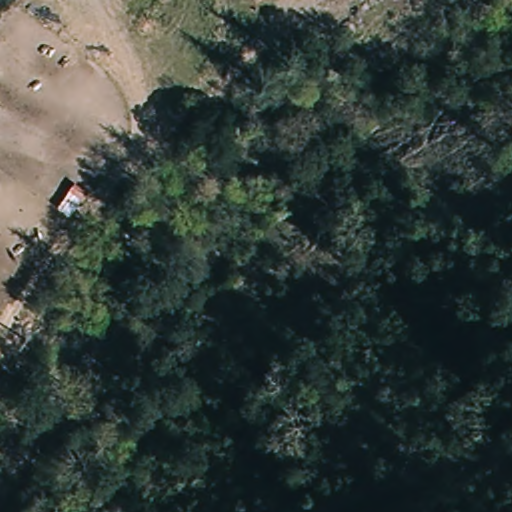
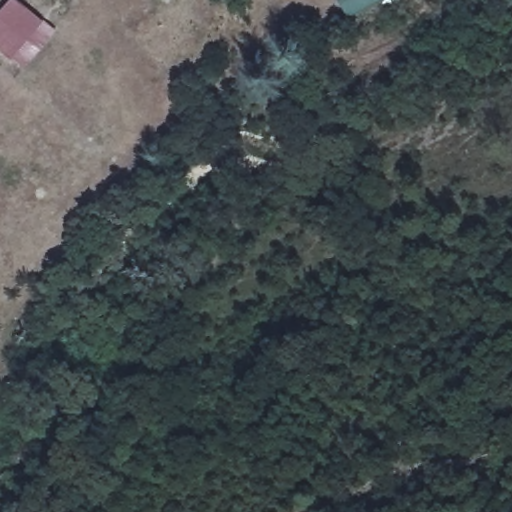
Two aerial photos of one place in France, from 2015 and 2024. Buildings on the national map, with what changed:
new [(43,23),(58,33),(27,71),(13,60),(0,50),(0,13),(10,0),(16,0),(45,21),(43,23)]
new [(385,0),(348,19),(338,0),(385,0)]

